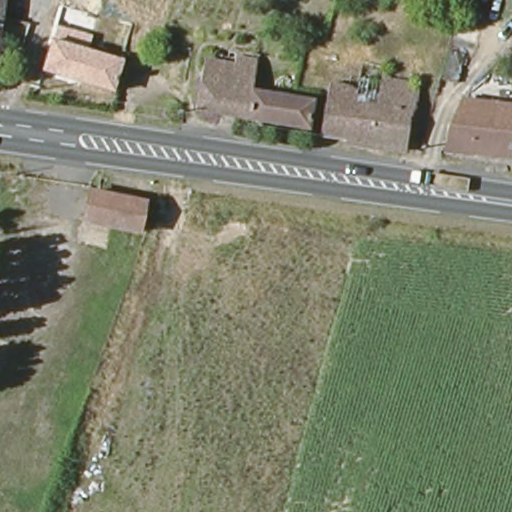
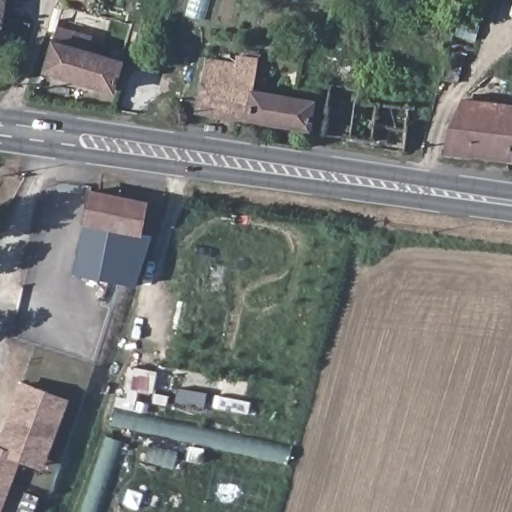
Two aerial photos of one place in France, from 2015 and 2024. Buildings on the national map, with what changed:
unchanged [(0,32),(0,0),(4,0),(0,32)]
unchanged [(125,62),(115,92),(45,72),(54,42),(125,62)]
unchanged [(465,53),(457,82),(442,77),(449,48),(465,53)]
unchanged [(255,65),(251,94),(312,105),(307,134),(196,113),(205,64),(234,69),(235,62),(255,65)]
unchanged [(350,157),(350,152),(325,149),(337,70),(368,78),(369,75),(390,80),(389,90),(422,99),(419,123),(411,122),(407,165),(350,157)]
unchanged [(512,150),(509,165),(471,159),(471,160),(443,157),(448,127),(457,128),(461,104),(503,108),(506,89),(512,90),(512,150)]
unchanged [(141,203),(134,233),(81,222),(87,192),(141,203)]
new [(134,286),(73,272),(84,222),(134,233),(134,230),(152,234),(134,286)]
new [(1,512),(0,512),(0,433),(20,379),(69,399),(44,469),(22,462),(1,512)]

